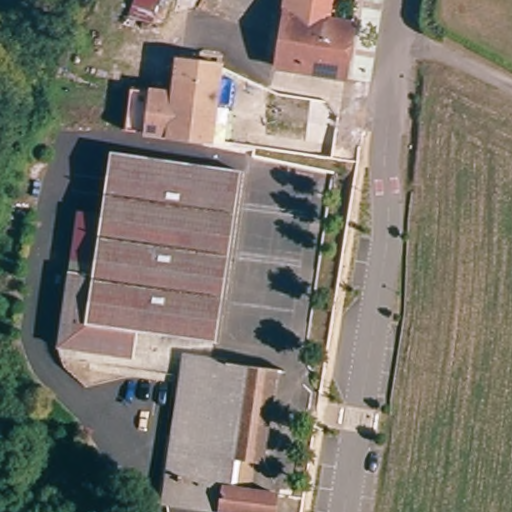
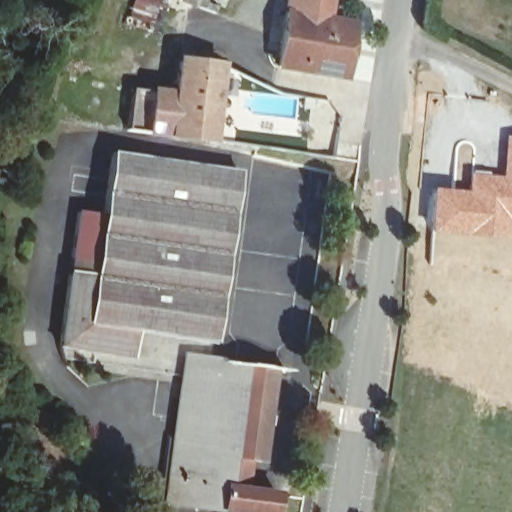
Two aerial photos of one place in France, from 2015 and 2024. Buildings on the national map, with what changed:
unchanged [(285,15),(287,0),(330,0),(330,18),(285,15)]
unchanged [(285,15),(330,18),(350,21),(342,79),(277,71),(285,15)]
unchanged [(210,135),(170,132),(178,67),(181,59),(217,62),(216,85),(210,135)]
new [(465,191),(468,172),(500,175),(505,135),(512,136),(512,225),(510,225),(508,240),(427,235),(432,189),(465,191)]
unchanged [(55,355),(67,276),(92,278),(112,146),(147,152),(109,362),(55,355)]
unchanged [(147,152),(165,155),(145,340),(135,338),(132,365),(109,362),(147,152)]
unchanged [(165,155),(232,167),(210,348),(145,340),(165,155)]
unchanged [(217,360),(266,367),(260,420),(174,409),(180,356),(217,360)]
unchanged [(260,420),(255,456),(232,453),(228,486),(275,491),(272,512),(224,512),(163,505),(174,409),(260,420)]

